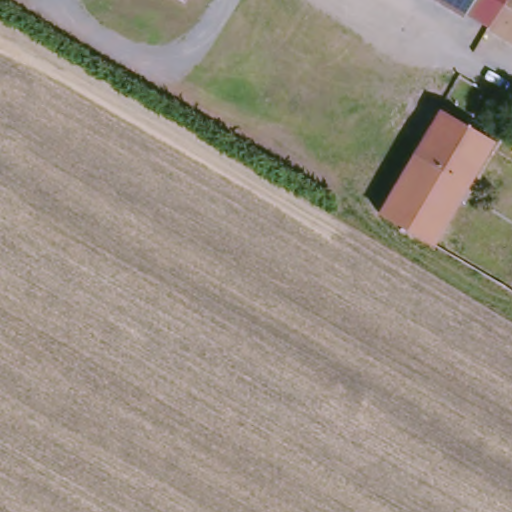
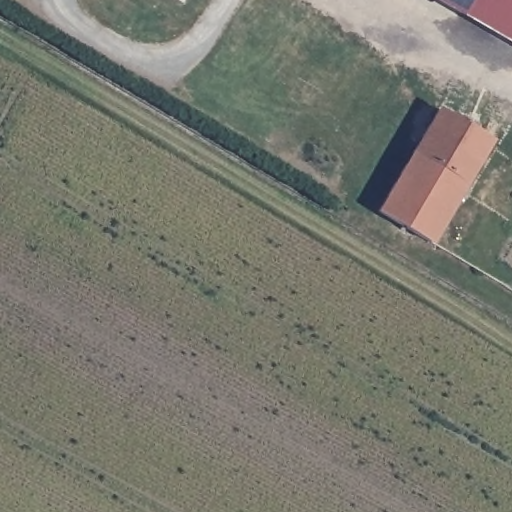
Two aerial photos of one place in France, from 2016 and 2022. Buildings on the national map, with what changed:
unchanged [(183,1),(181,0),(184,0),(183,1)]
unchanged [(432,0),(512,0),(512,45),(462,17),(432,0)]
unchanged [(490,143),(430,245),(375,214),(435,112),(490,143)]

